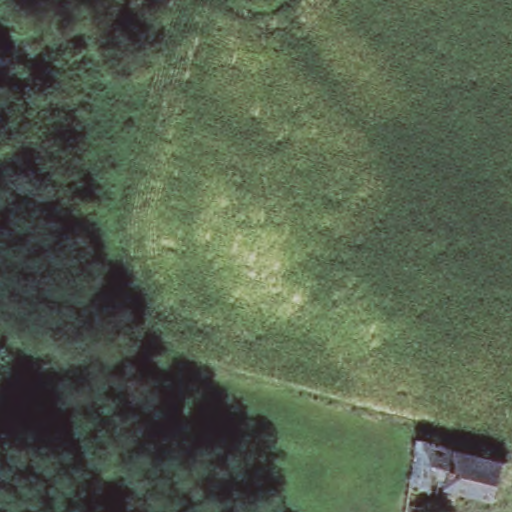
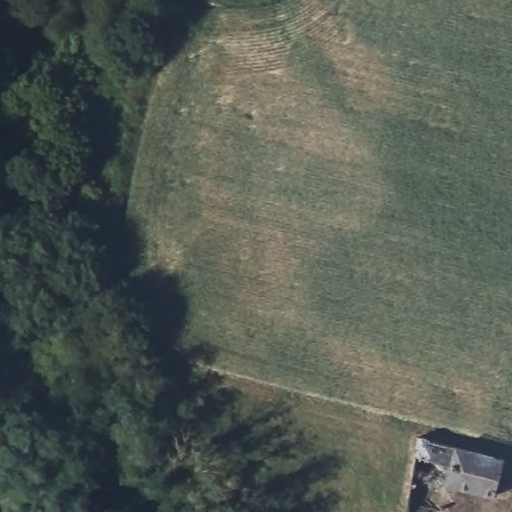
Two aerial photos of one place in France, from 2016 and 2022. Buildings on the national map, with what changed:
unchanged [(444,485),(442,491),(409,483),(419,437),(453,446),(503,455),(495,493),(444,485)]

